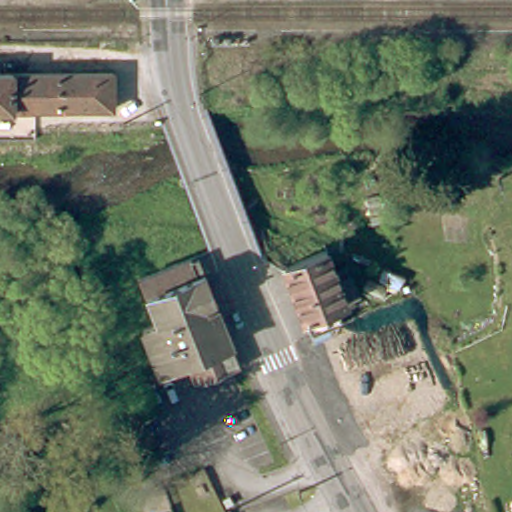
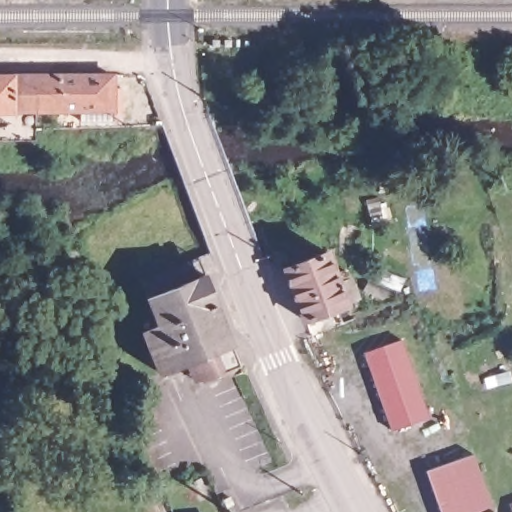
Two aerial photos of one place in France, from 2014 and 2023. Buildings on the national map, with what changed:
unchanged [(108,104),(0,105),(0,69),(107,69),(108,104)]
unchanged [(280,261),(321,246),(342,299),(300,314),(280,261)]
unchanged [(178,352),(150,363),(133,321),(150,314),(131,271),(181,251),(190,248),(196,264),(206,288),(204,290),(223,334),(232,355),(216,361),(194,371),(192,367),(186,370),(178,352)]
new [(430,416),(392,429),(365,351),(402,338),(430,416)]
new [(492,512),(440,512),(425,468),(474,451),(495,511),(492,512)]

